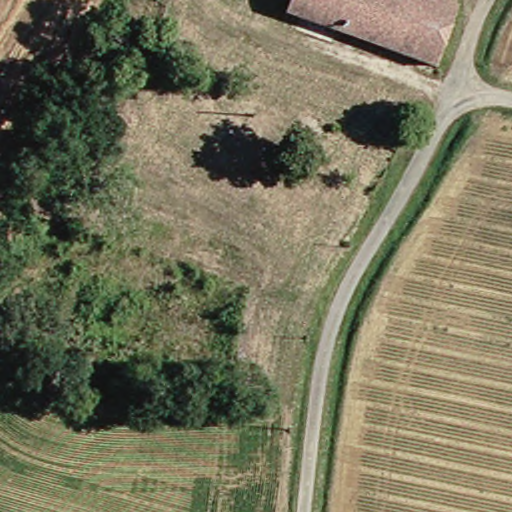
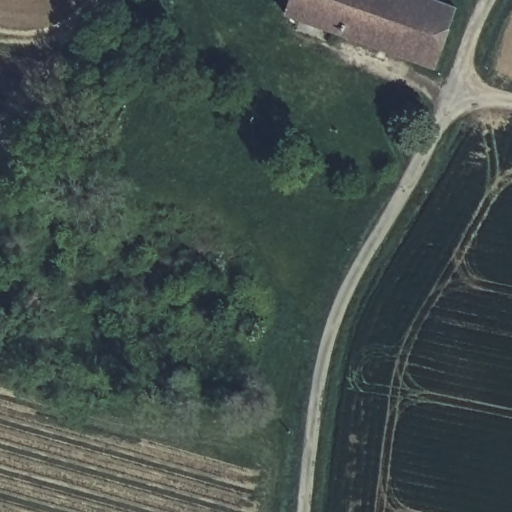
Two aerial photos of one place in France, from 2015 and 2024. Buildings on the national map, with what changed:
unchanged [(425,0),(450,9),(430,66),(279,14),(285,0),(425,0)]

